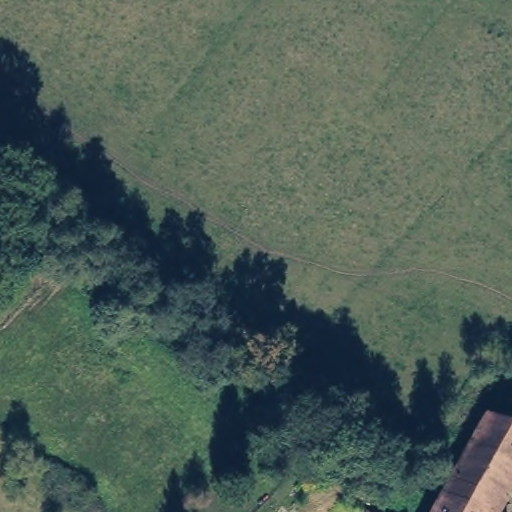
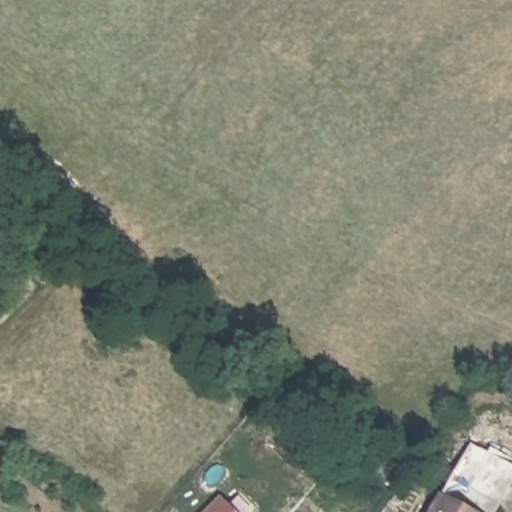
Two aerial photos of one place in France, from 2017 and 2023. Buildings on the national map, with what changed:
unchanged [(512,423),(512,486),(503,505),(500,512),(433,512),(442,493),(452,474),(481,410),(512,423)]
new [(237,512),(206,512),(222,496),(237,512)]

